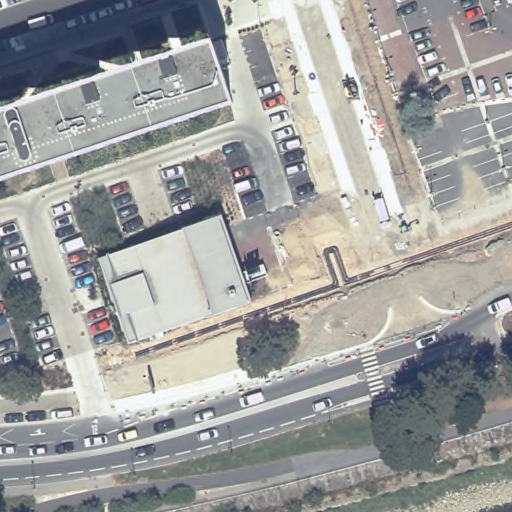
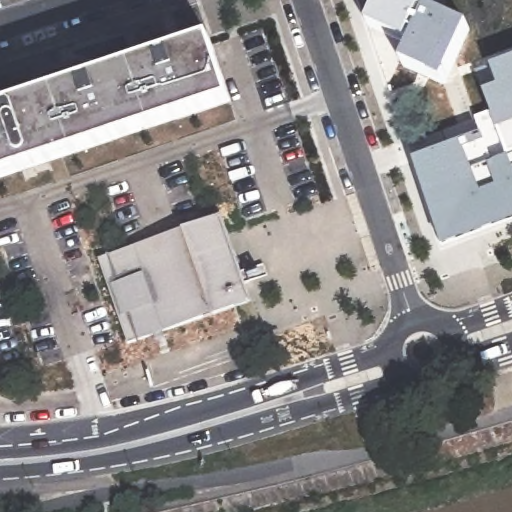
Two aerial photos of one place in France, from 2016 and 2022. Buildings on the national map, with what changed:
new [(397,74),(392,63),(397,51),(356,34),(371,0),(438,0),(436,5),(475,23),(478,31),(453,91),(441,95),(397,74)]
unchanged [(231,101),(205,110),(0,179),(0,109),(210,39),(231,101)]
new [(442,247),(410,159),(482,133),(476,120),(493,119),(482,91),(497,85),(490,64),(512,56),(512,221),(442,247)]
unchanged [(103,260),(224,219),(244,275),(254,303),(169,333),(171,339),(162,341),(161,336),(134,345),(103,260)]

